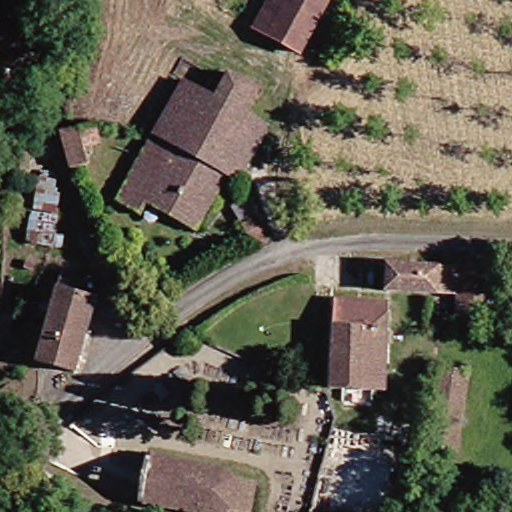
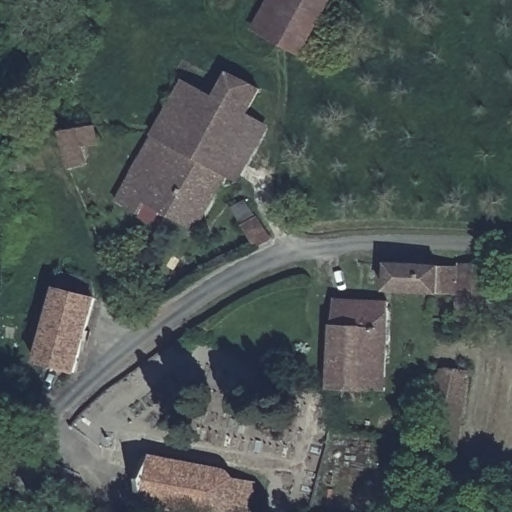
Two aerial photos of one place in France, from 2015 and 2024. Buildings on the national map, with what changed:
unchanged [(10,0),(26,0),(26,2),(10,2),(10,0)]
unchanged [(260,28),(277,0),(337,0),(305,54),(260,28)]
unchanged [(202,227),(155,201),(150,211),(125,197),(194,76),(218,90),(230,67),(265,87),(254,110),(226,165),(235,170),(202,227)]
unchanged [(235,170),(226,165),(254,110),(278,123),(248,177),(235,170)]
unchanged [(72,132),(106,130),(111,167),(76,173),(72,132)]
unchanged [(244,221),(258,212),(277,249),(263,257),(244,221)]
unchanged [(465,296),(467,266),(467,259),(506,259),(500,322),(463,321),(465,296)]
unchanged [(396,295),(372,293),(372,263),(397,264),(467,266),(465,296),(396,295)]
unchanged [(47,362),(56,323),(64,292),(68,275),(106,283),(103,300),(85,371),(47,362)]
unchanged [(352,417),(352,403),(352,392),(338,391),(338,302),(396,303),(396,317),(395,393),(380,392),(380,403),(380,417),(352,417)]
unchanged [(453,451),(452,462),(441,461),(446,383),(449,370),(471,370),(465,452),(453,451)]
unchanged [(224,471),(230,466),(238,470),(241,475),(262,480),(257,512),(203,512),(146,503),(156,458),(224,471)]

